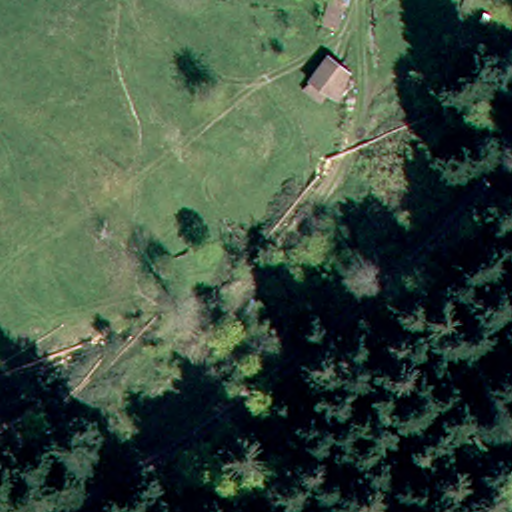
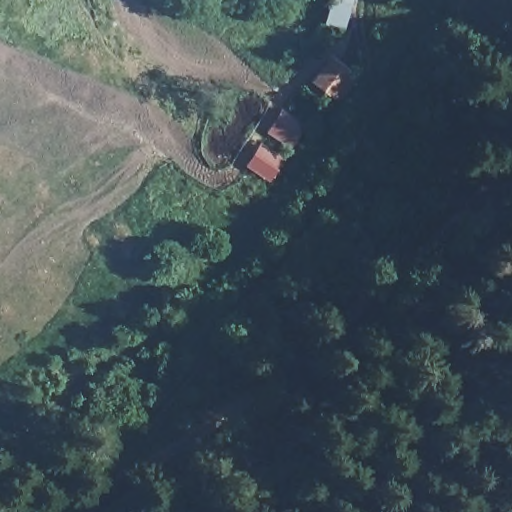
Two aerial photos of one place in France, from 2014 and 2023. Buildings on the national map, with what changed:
unchanged [(327,25),(336,0),(351,0),(340,30),(327,25)]
unchanged [(316,82),(334,56),(352,71),(333,95),(335,96),(330,104),(310,90),(316,82)]

